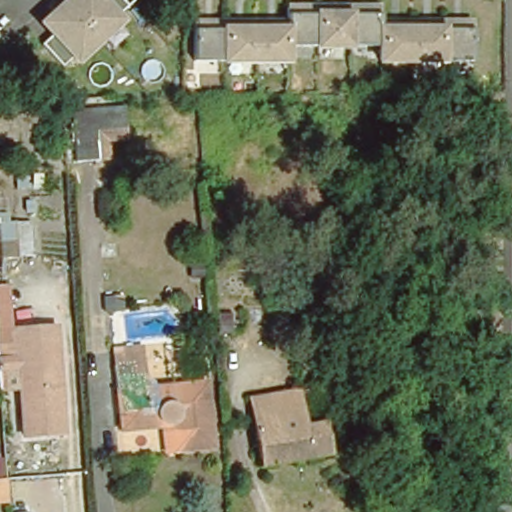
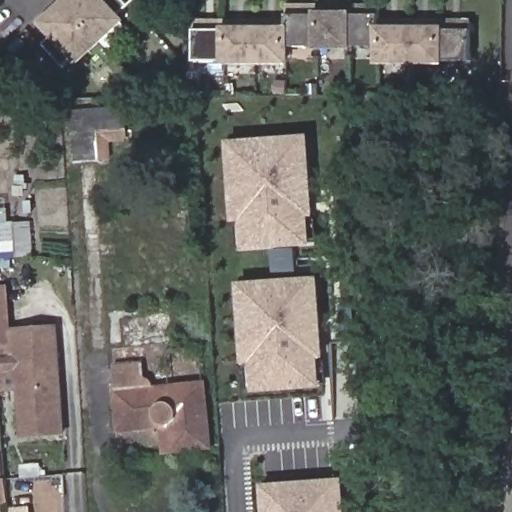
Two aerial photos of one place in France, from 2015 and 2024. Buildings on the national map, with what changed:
unchanged [(128,22),(81,68),(70,58),(62,66),(39,46),(47,37),(37,26),(65,0),(136,0),(122,14),(128,22)]
unchanged [(148,0),(151,0),(149,1),(148,0)]
unchanged [(379,2),(378,18),(470,22),(471,64),(376,66),(375,47),(291,47),(291,64),(189,65),(192,20),(286,19),(285,2),(379,2)]
unchanged [(75,167),(72,133),(72,106),(121,104),(123,130),(97,132),(100,165),(75,167)]
new [(236,219),(235,202),(230,202),(229,182),(233,181),(232,165),(227,165),(226,145),(235,144),(302,139),(314,139),(316,160),(308,160),(312,215),(307,216),(307,223),(317,222),(318,243),(308,244),(246,248),(237,249),(236,226),(244,226),(244,219),(236,219)]
unchanged [(27,222),(28,258),(0,259),(0,223),(27,222)]
new [(246,360),(245,344),(240,344),(239,323),(244,323),(242,307),(237,307),(236,286),(245,285),(312,280),(324,280),(325,300),(317,301),(322,356),(317,357),(317,364),(327,363),(328,384),(318,385),(256,389),(248,390),(247,367),(255,367),(254,360),(246,360)]
unchanged [(7,287),(11,331),(15,331),(56,328),(64,433),(22,436),(17,367),(0,368),(0,288),(7,287)]
unchanged [(117,357),(142,355),(147,394),(209,388),(216,453),(170,458),(167,432),(126,437),(122,397),(117,357)]
demolished [(303,410),(306,424),(325,421),(325,422),(330,455),(327,455),(258,466),(251,417),(303,410)]
unchanged [(7,477),(9,492),(0,493),(0,478),(7,477)]
new [(267,508),(260,508),(259,488),(271,486),(338,482),(347,482),(349,503),(343,503),(344,512),(268,512),(267,508)]

